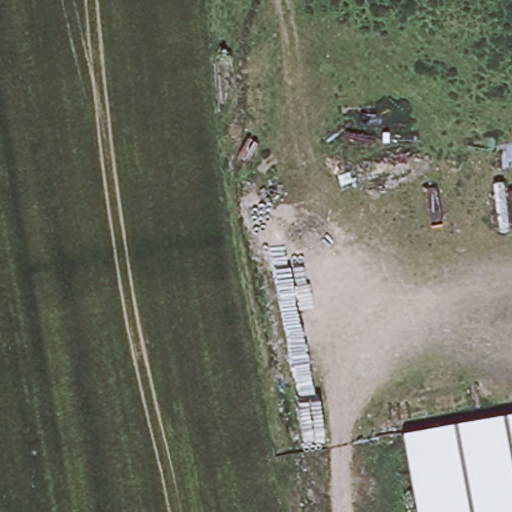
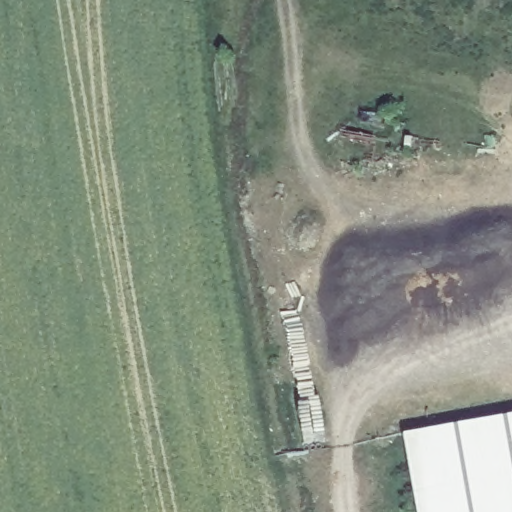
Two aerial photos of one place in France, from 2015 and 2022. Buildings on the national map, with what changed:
unchanged [(512,410),(512,512),(417,512),(403,429),(512,410)]

